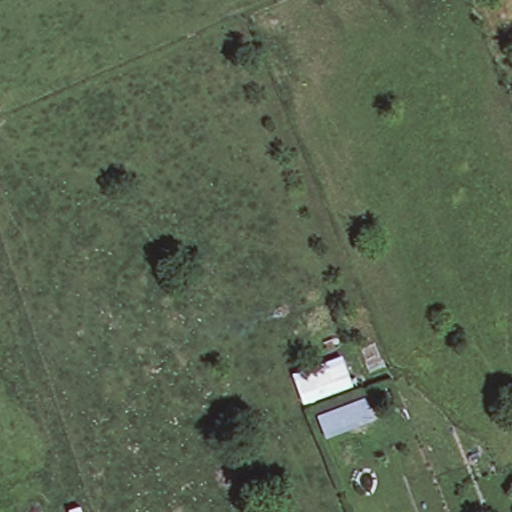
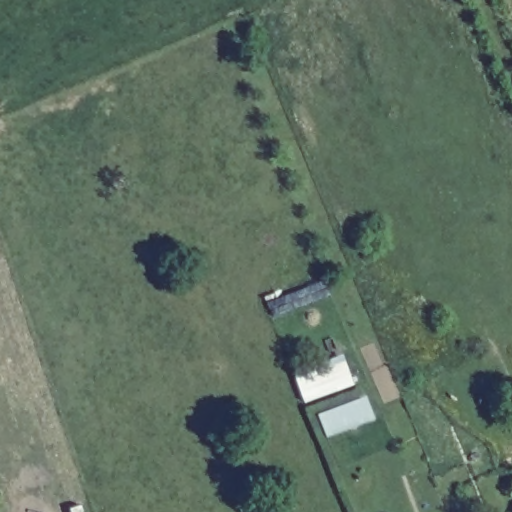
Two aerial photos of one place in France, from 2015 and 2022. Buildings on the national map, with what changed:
unchanged [(327,445),(318,420),(369,397),(380,421),(327,445)]

